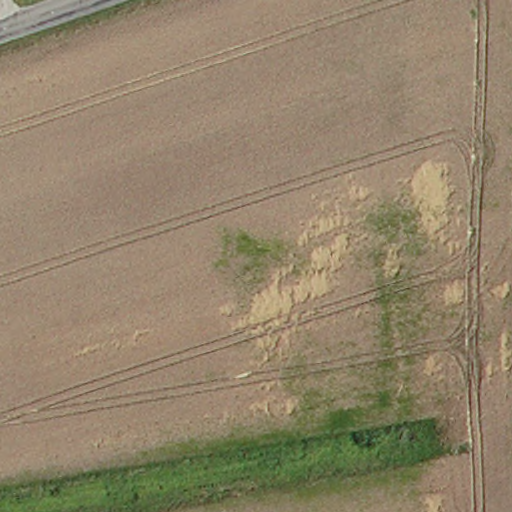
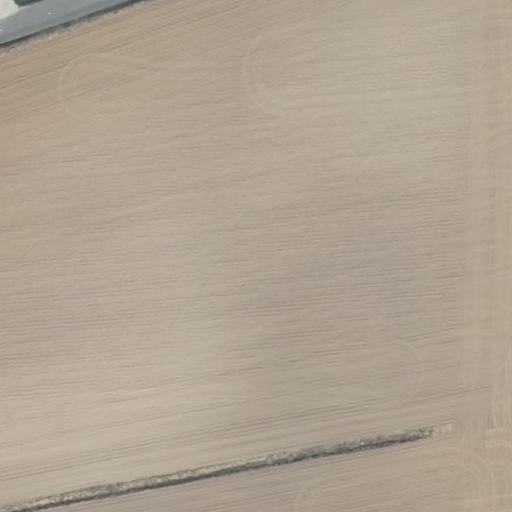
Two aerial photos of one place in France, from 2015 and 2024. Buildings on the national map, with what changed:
[]

